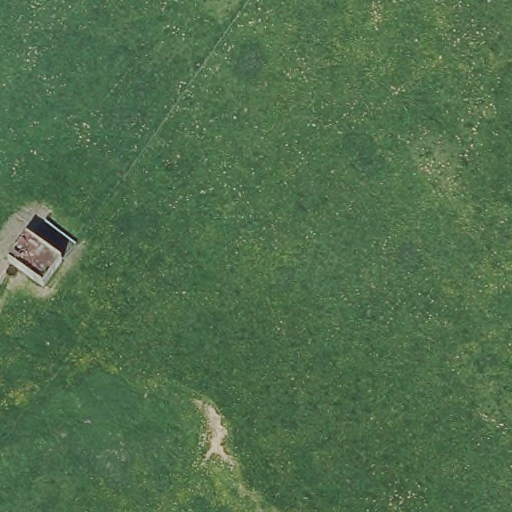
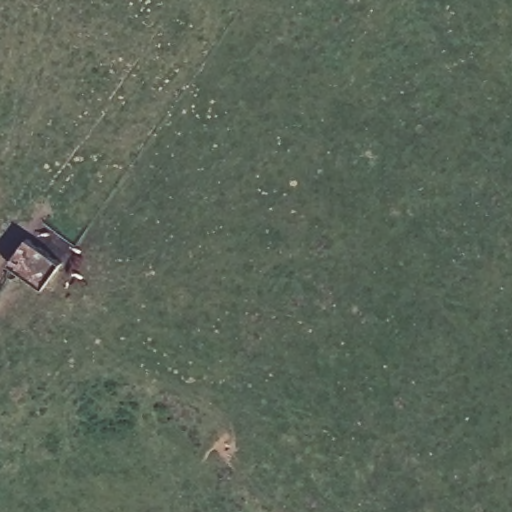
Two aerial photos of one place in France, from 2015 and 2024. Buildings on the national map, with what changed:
unchanged [(7,261),(28,234),(60,259),(41,286),(7,261)]

